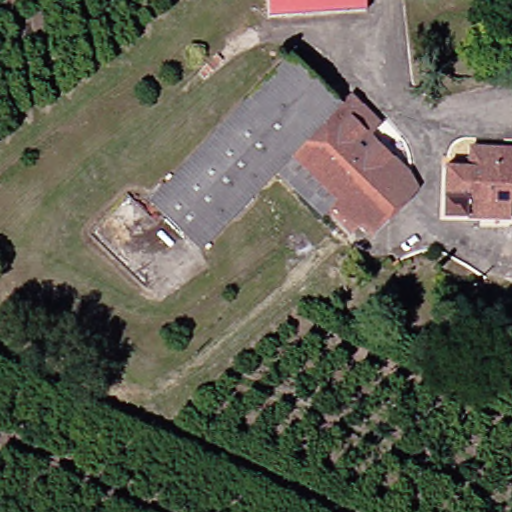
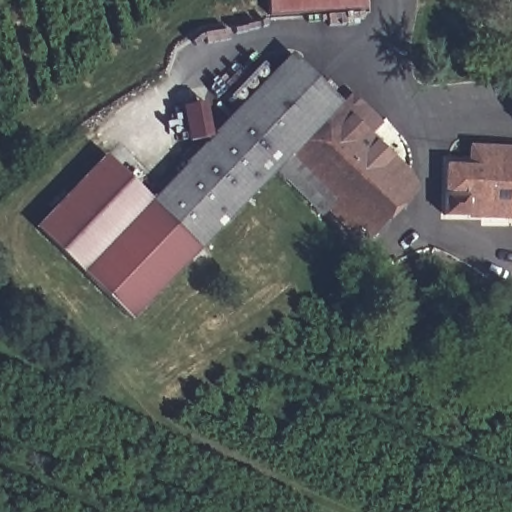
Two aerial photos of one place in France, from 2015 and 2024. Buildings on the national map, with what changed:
unchanged [(356,12),(264,17),(263,1),(263,0),(355,0),(356,12)]
unchanged [(285,155),(271,170),(270,172),(198,246),(151,200),(286,57),(335,104),(285,155)]
unchanged [(384,222),(370,236),(369,237),(355,224),(347,231),(324,209),(319,215),(271,170),(285,155),(335,104),(343,95),(345,92),(376,122),(366,133),(405,170),(415,187),(384,222)]
unchanged [(503,216),(443,215),(445,167),(470,169),(470,147),(512,148),(512,201),(505,201),(503,216)]
new [(104,156),(151,200),(198,246),(201,250),(132,320),(37,227),(104,156)]

